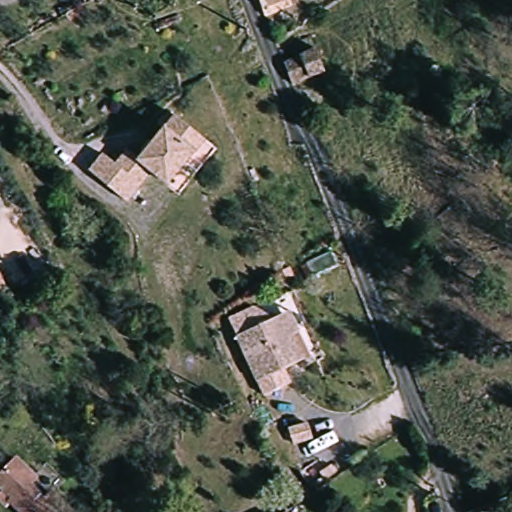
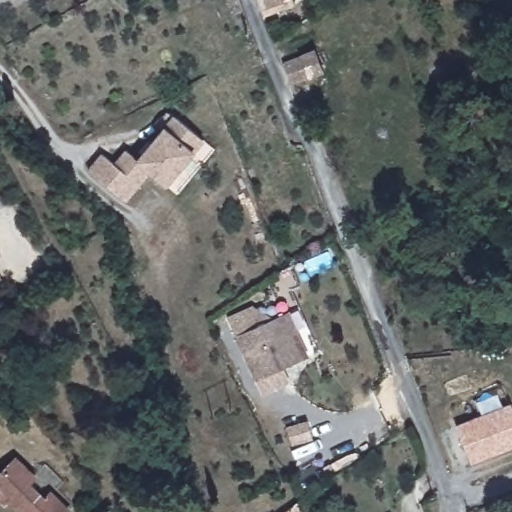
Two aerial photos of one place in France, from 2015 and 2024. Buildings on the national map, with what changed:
unchanged [(262,8),(259,0),(281,0),(262,8)]
unchanged [(286,60),(316,49),(324,72),(295,82),(286,60)]
unchanged [(205,140),(195,152),(191,157),(200,165),(177,194),(166,187),(149,173),(125,203),(87,170),(100,153),(113,164),(124,151),(137,160),(164,126),(172,114),(205,140)]
unchanged [(256,377),(235,332),(283,310),(290,307),(299,327),(292,330),(304,355),(256,377)]
new [(512,410),(512,447),(472,464),(457,426),(509,404),(512,410)]
unchanged [(5,490),(0,484),(0,480),(17,463),(35,479),(27,488),(43,504),(51,497),(66,512),(19,512),(2,494),(5,490)]

